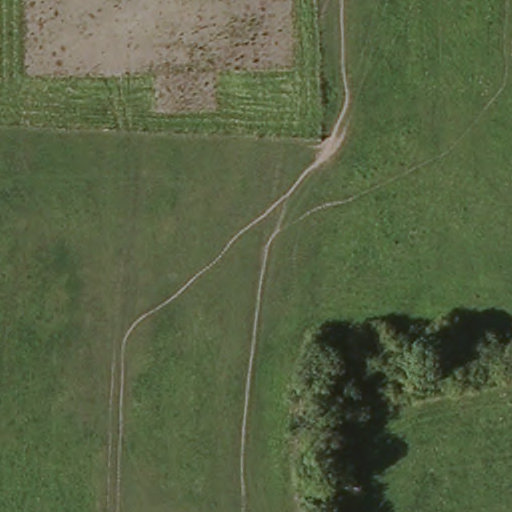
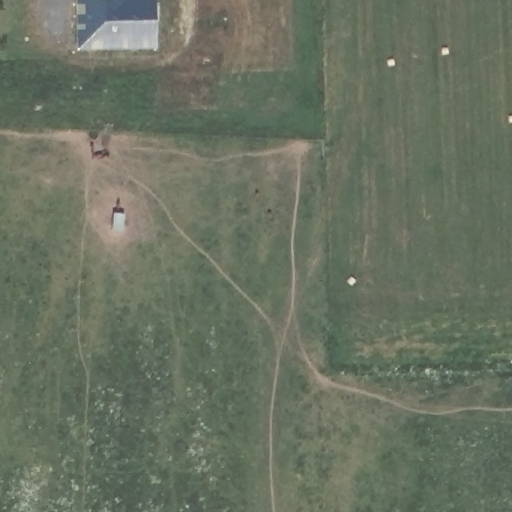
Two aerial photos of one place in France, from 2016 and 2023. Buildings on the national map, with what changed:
new [(125,5),(155,5),(157,49),(85,51),(85,0),(125,0),(125,5)]

